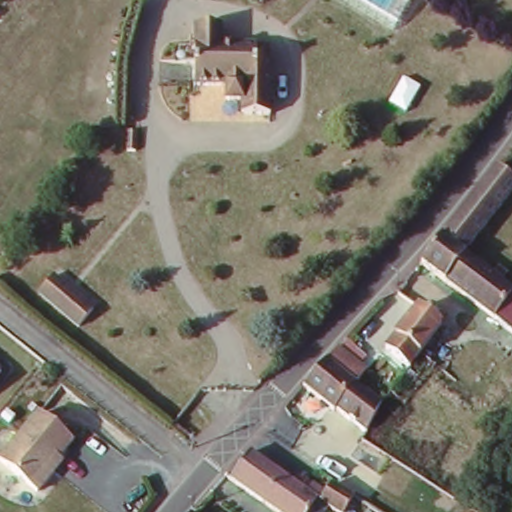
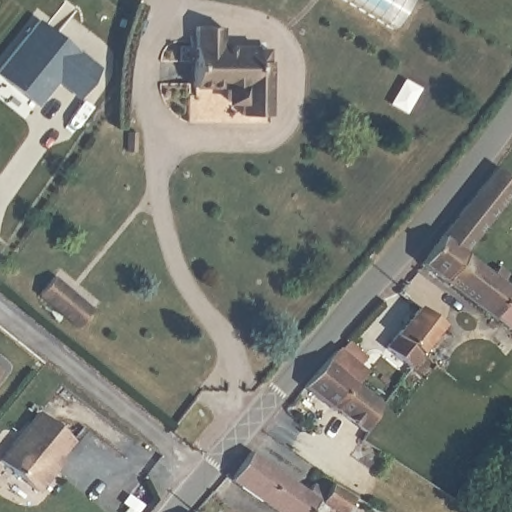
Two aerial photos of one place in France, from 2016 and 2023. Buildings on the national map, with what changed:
new [(34,104),(0,78),(0,62),(35,17),(100,68),(78,100),(55,81),(34,104)]
unchanged [(272,118),(243,117),(243,104),(228,104),(229,88),(197,87),(197,61),(182,59),(184,44),(192,46),(193,26),(220,27),(222,47),(262,48),(262,53),(273,53),(273,64),(275,65),(272,118)]
unchanged [(386,106),(402,79),(420,88),(405,115),(386,106)]
unchanged [(512,179),(512,200),(465,252),(512,288),(512,333),(421,266),(496,167),(512,179)]
unchanged [(34,289),(50,271),(89,307),(74,324),(71,322),(48,302),(34,289)]
unchanged [(388,348),(422,307),(447,326),(413,368),(388,348)]
unchanged [(305,388),(327,363),(349,340),(367,357),(358,367),(364,374),(354,386),(382,405),(365,435),(305,388)]
unchanged [(71,440),(49,467),(53,471),(35,492),(0,462),(0,457),(37,412),(71,440)]
demolished [(321,445),(297,433),(303,421),(325,430),(327,432),(321,445)]
unchanged [(330,506),(326,512),(277,512),(233,486),(234,482),(251,455),(306,490),(311,481),(324,490),(330,482),(355,496),(349,506),(359,511),(358,512),(341,512),(330,506)]

